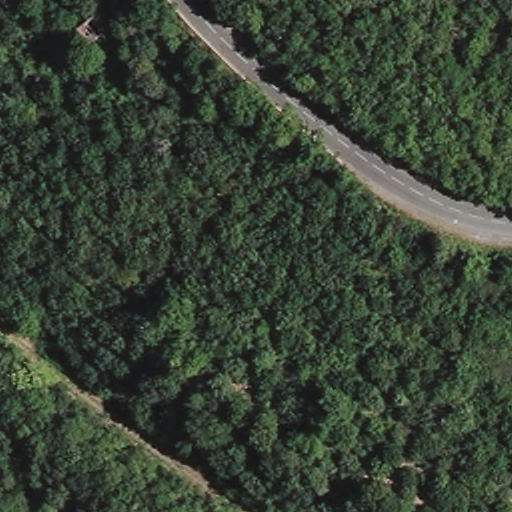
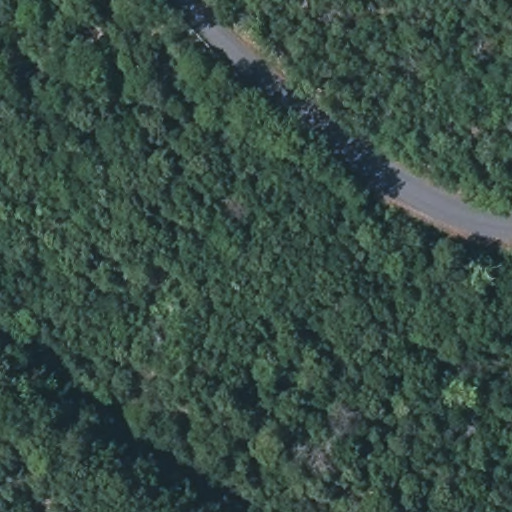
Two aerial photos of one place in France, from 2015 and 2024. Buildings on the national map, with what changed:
unchanged [(97,44),(82,53),(71,39),(86,29),(97,44)]

